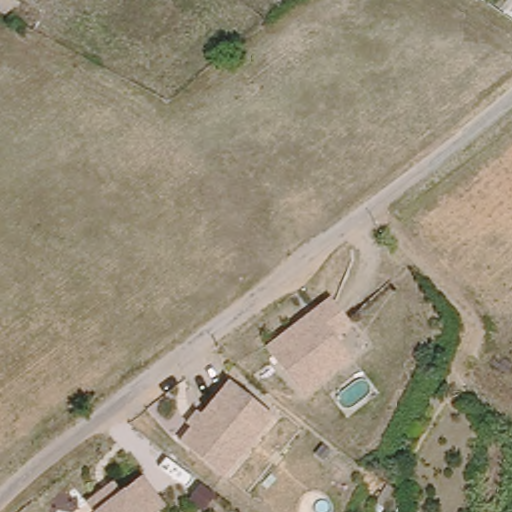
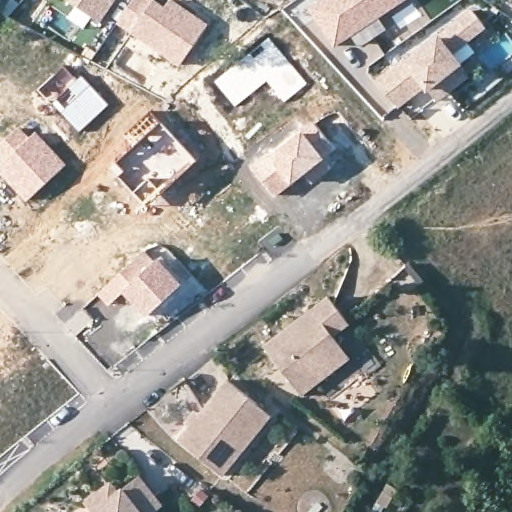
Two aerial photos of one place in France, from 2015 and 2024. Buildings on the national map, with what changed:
new [(60,0),(122,0),(101,29),(60,0)]
new [(133,0),(156,0),(166,6),(171,0),(175,0),(209,25),(180,66),(132,31),(119,22),(133,0)]
new [(353,36),(338,46),(313,9),(326,0),(407,0),(380,18),(389,31),(361,49),(353,36)]
new [(438,108),(434,103),(426,91),(413,101),(398,111),(377,86),(395,75),(408,65),(410,68),(477,21),(489,37),(454,61),(467,80),(471,86),(438,108)]
new [(268,85),(235,111),(212,79),(267,37),(304,81),(281,100),(268,85)]
new [(76,79),(82,75),(109,105),(80,131),(54,104),(52,105),(39,90),(64,66),(76,79)]
new [(162,121),(198,159),(146,203),(112,167),(162,121)]
new [(29,136),(36,130),(67,164),(27,201),(0,171),(0,162),(1,161),(0,160),(0,143),(19,126),(29,136)]
new [(318,152),(330,167),(312,181),(304,172),(274,195),(253,166),(272,153),(275,157),(315,126),(330,143),(318,152)]
new [(147,249),(156,259),(161,255),(184,282),(146,317),(123,293),(108,306),(97,293),(147,249)]
unchanged [(320,381),(303,393),(267,344),(268,344),(333,296),(353,323),(337,335),(344,345),(353,357),(320,381)]
unchanged [(279,416),(255,448),(231,479),(187,445),(235,382),(265,405),(279,416)]
unchanged [(84,501),(99,488),(109,479),(117,489),(137,471),(163,502),(150,512),(94,512),(84,501)]

